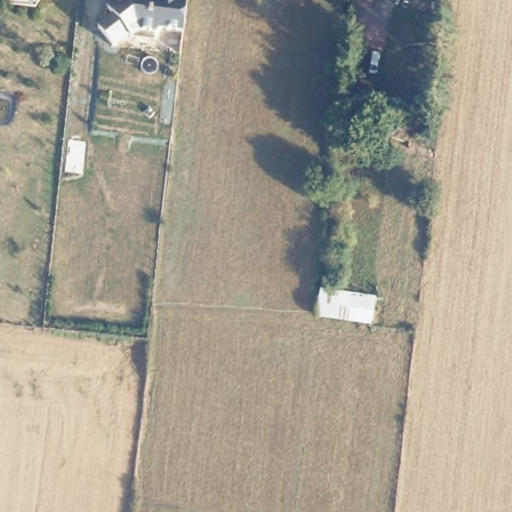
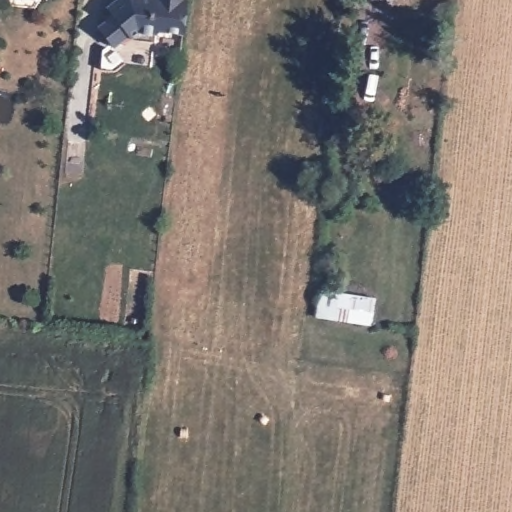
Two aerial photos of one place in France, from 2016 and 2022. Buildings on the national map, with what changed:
unchanged [(114,15),(109,6),(116,0),(188,0),(184,33),(161,32),(141,34),(110,47),(96,28),(114,15)]
unchanged [(319,314),(323,286),(381,294),(376,323),(319,314)]

